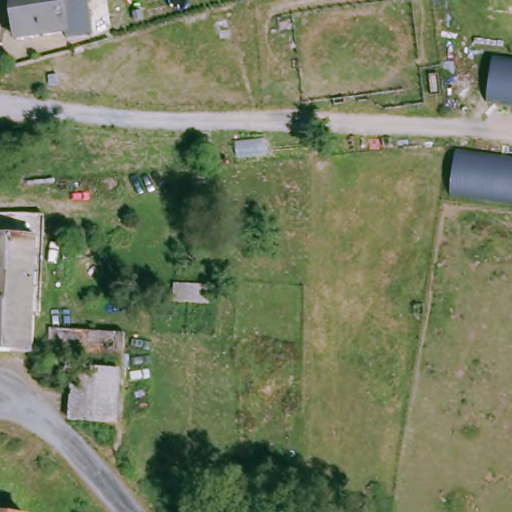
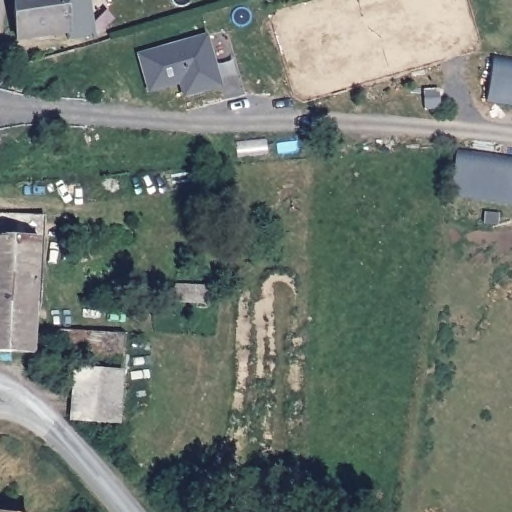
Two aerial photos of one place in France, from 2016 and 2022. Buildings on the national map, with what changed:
unchanged [(64,47),(62,39),(14,45),(9,0),(85,0),(90,42),(64,47)]
new [(184,99),(180,86),(147,94),(135,54),(206,35),(221,89),(184,99)]
unchanged [(493,59),(512,62),(512,102),(487,99),(493,59)]
unchanged [(454,143),(512,151),(512,202),(449,191),(454,143)]
unchanged [(40,228),(34,344),(0,341),(0,226),(40,228)]
unchanged [(209,286),(208,305),(174,303),(175,285),(209,286)]
unchanged [(131,340),(129,359),(53,353),(54,333),(131,340)]
unchanged [(63,373),(126,376),(123,427),(62,425),(63,373)]

